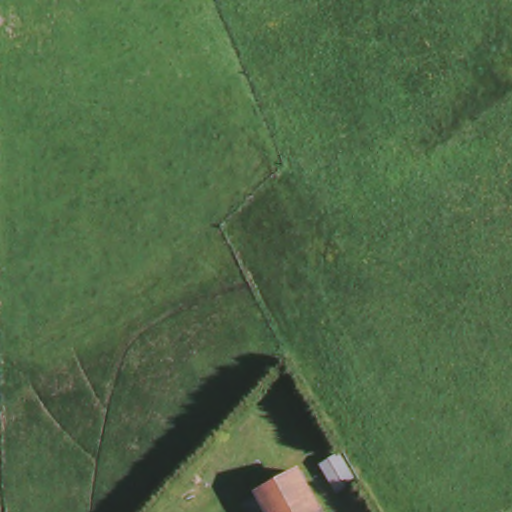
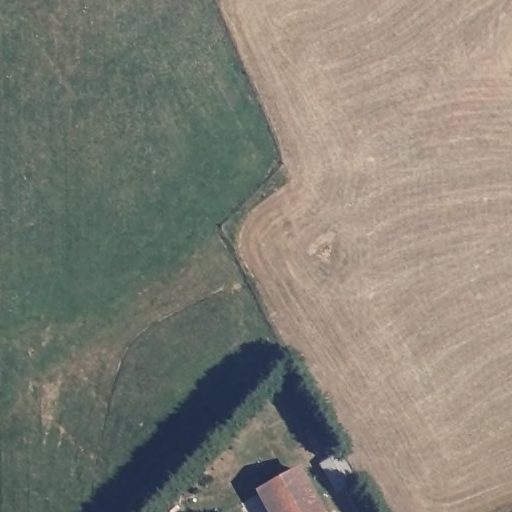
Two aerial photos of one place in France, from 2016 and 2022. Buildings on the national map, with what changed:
unchanged [(332,495),(316,468),(336,457),(350,485),(332,495)]
unchanged [(273,512),(272,510),(270,512),(259,512),(252,499),(297,474),(316,512),(273,512)]

